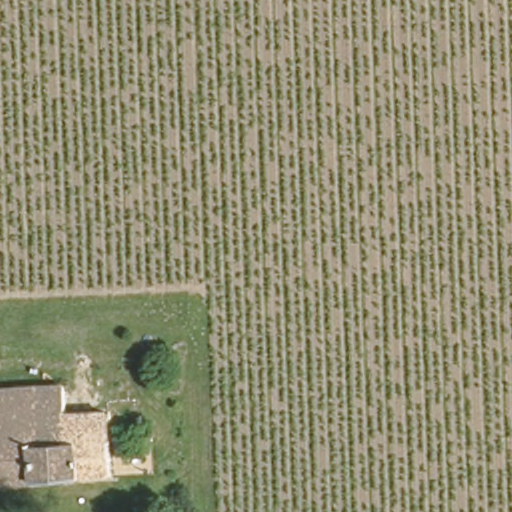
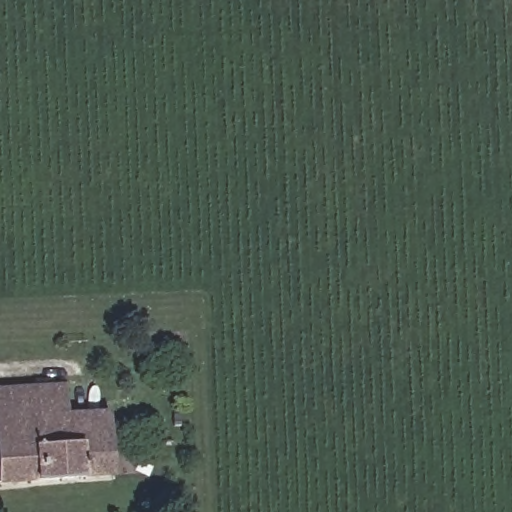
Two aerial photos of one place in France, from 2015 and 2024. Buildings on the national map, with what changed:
unchanged [(71,442),(113,443),(113,472),(0,477),(0,386),(69,384),(71,442)]

